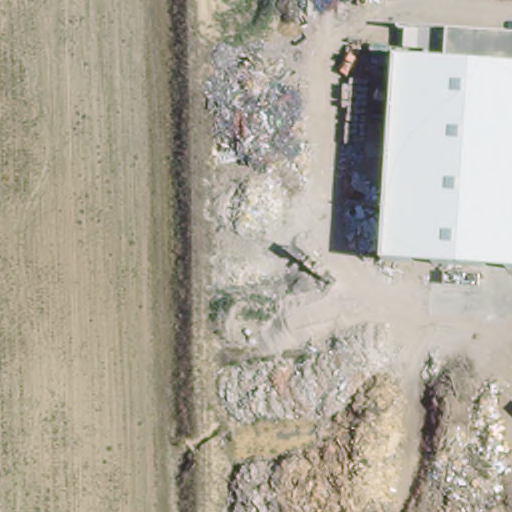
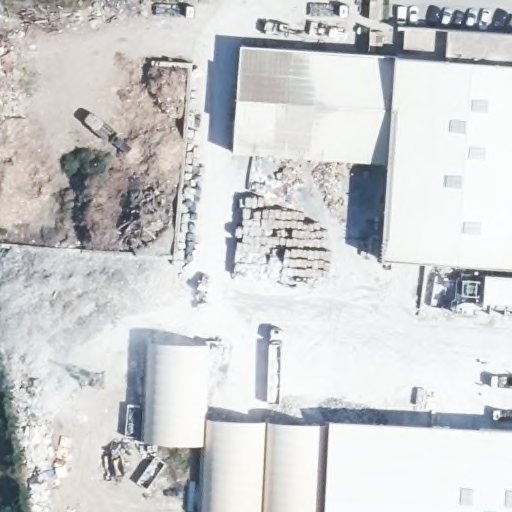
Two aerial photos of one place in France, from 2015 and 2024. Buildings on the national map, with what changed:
unchanged [(512,33),(512,268),(383,261),(397,55),(426,57),(427,49),(405,48),(406,26),(512,33)]
new [(397,55),(390,159),(233,153),(240,46),(397,55)]
new [(145,443),(147,341),(207,343),(203,418),(324,423),(320,512),(202,512),(204,447),(145,443)]
new [(327,512),(331,420),(512,430),(512,512),(327,512)]

